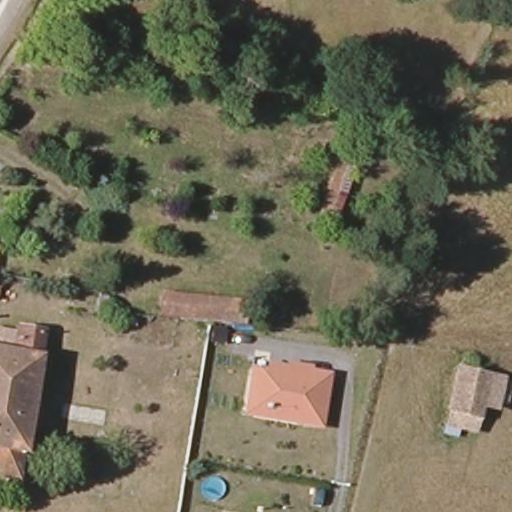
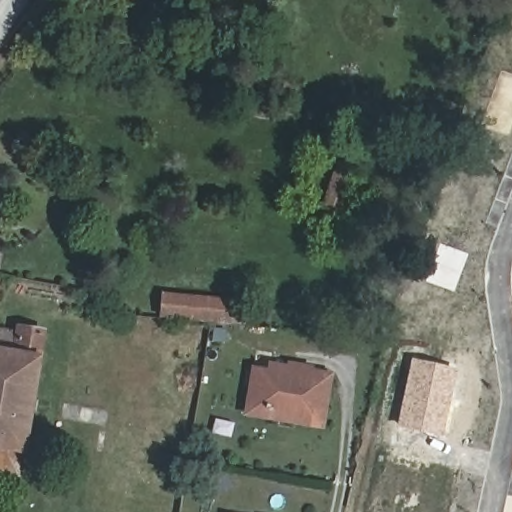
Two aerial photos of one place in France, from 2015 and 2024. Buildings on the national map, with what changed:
new [(192,77),(175,74),(161,70),(167,42),(181,45),(198,48),(192,77)]
unchanged [(334,209),(320,205),(340,143),(355,148),(334,209)]
unchanged [(0,291),(0,273),(3,273),(0,291)]
unchanged [(158,320),(161,299),(221,305),(223,288),(245,290),(243,307),(241,328),(158,320)]
unchanged [(113,296),(109,296),(110,291),(114,292),(113,296)]
demolished [(380,332),(370,330),(372,320),(382,322),(380,332)]
unchanged [(16,483),(0,480),(0,354),(3,354),(4,346),(13,347),(15,331),(40,336),(16,483)]
new [(395,426),(410,358),(457,368),(442,437),(395,426)]
unchanged [(262,411),(246,407),(254,364),(289,371),(288,375),(308,378),(309,375),(328,378),(319,428),(300,425),(261,417),(262,411)]
demolished [(479,406),(477,417),(476,417),(472,431),(445,424),(448,411),(447,410),(456,369),(487,376),(479,406)]
demolished [(506,402),(497,400),(501,382),(509,382),(506,402)]

